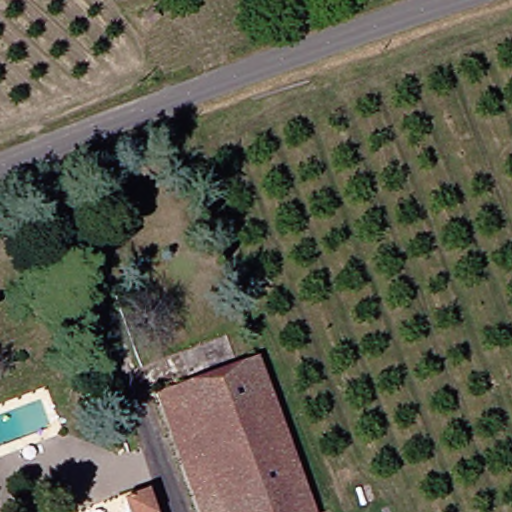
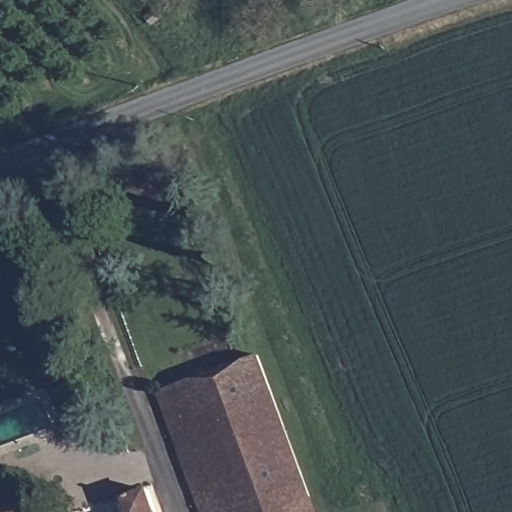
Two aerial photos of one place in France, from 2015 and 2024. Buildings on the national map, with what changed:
unchanged [(153,22),(146,13),(154,7),(161,16),(153,22)]
unchanged [(269,352),(314,472),(233,502),(236,512),(212,512),(166,389),(269,352)]
unchanged [(314,472),(327,506),(311,512),(236,512),(233,502),(314,472)]
unchanged [(157,490),(165,512),(134,512),(129,500),(157,490)]

